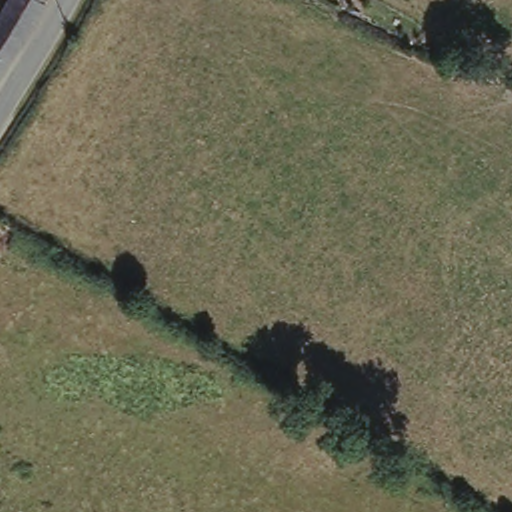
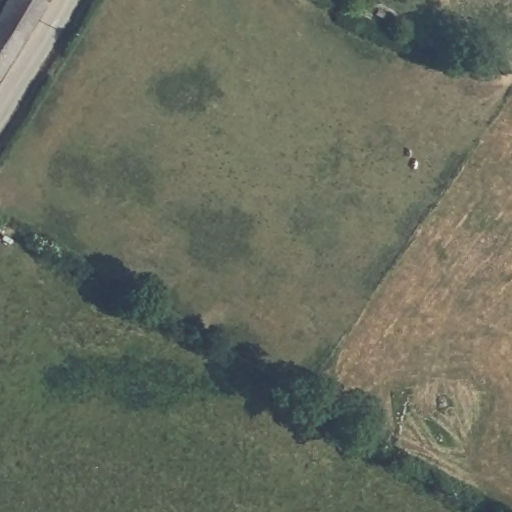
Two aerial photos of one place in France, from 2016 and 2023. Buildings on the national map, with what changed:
unchanged [(38,8),(21,37),(0,70),(0,4),(3,0),(43,0),(38,8)]

